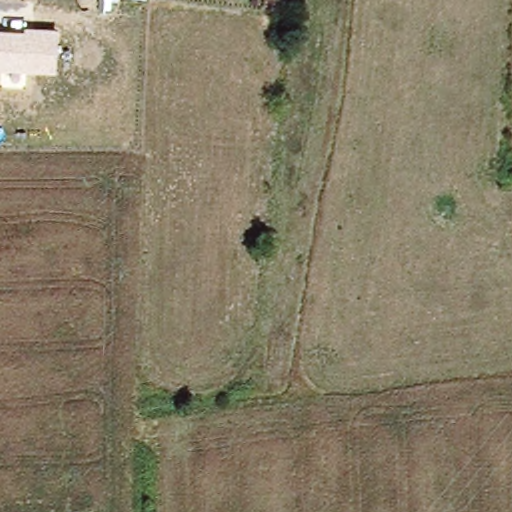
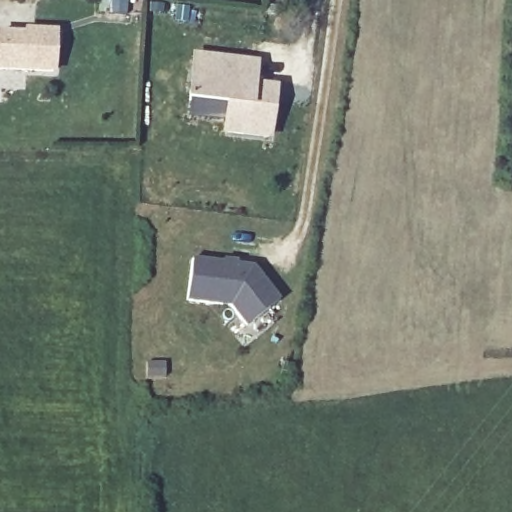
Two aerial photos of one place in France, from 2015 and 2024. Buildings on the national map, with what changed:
unchanged [(0,70),(0,32),(24,32),(24,28),(57,29),(56,72),(0,70)]
new [(260,63),(257,85),(278,88),(277,98),(271,137),(227,130),(231,104),(192,98),(199,54),(260,63)]
new [(254,267),(279,302),(243,329),(228,307),(186,302),(191,259),(254,267)]

